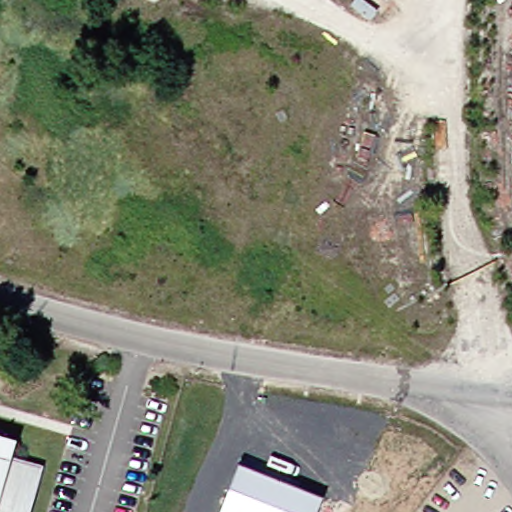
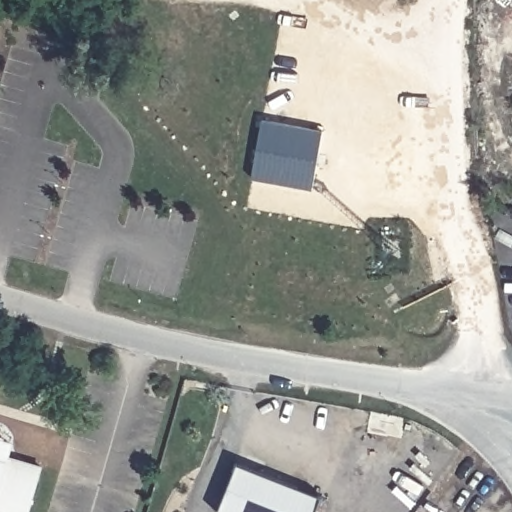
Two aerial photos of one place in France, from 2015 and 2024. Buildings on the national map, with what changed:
new [(314,190),(253,178),(263,119),(325,131),(314,190)]
demolished [(288,270),(313,287),(300,306),(275,288),(288,270)]
unchanged [(6,319),(25,325),(19,344),(0,338),(0,336),(6,319)]
unchanged [(5,442),(1,458),(0,458),(0,441),(5,442)]
unchanged [(1,458),(21,465),(41,470),(32,501),(29,512),(0,512),(0,458),(1,458)]
unchanged [(322,496),(315,512),(218,512),(239,463),(322,496)]

